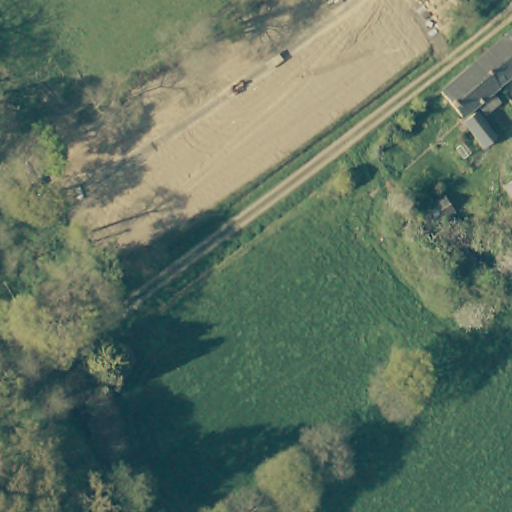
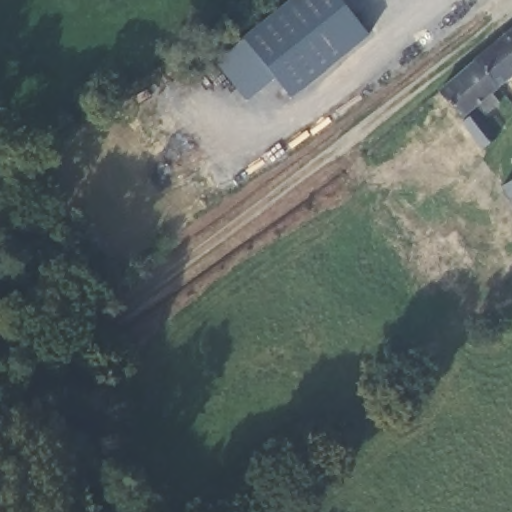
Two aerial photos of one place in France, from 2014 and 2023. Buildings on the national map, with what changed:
new [(273,78),(245,101),(214,63),(242,38),(291,0),(338,0),(369,36),(290,99),(273,78)]
unchanged [(497,75),(474,48),(512,17),(512,63),(497,75)]
unchanged [(484,104),(476,92),(458,106),(437,78),(474,48),(497,75),(491,81),(499,93),(484,104)]
unchanged [(464,113),(475,104),(497,129),(481,143),(476,137),(459,116),(464,113)]
unchanged [(512,174),(512,191),(504,178),(512,174)]
unchanged [(449,217),(442,222),(434,209),(444,201),(442,197),(459,187),(469,207),(452,219),(449,217)]

